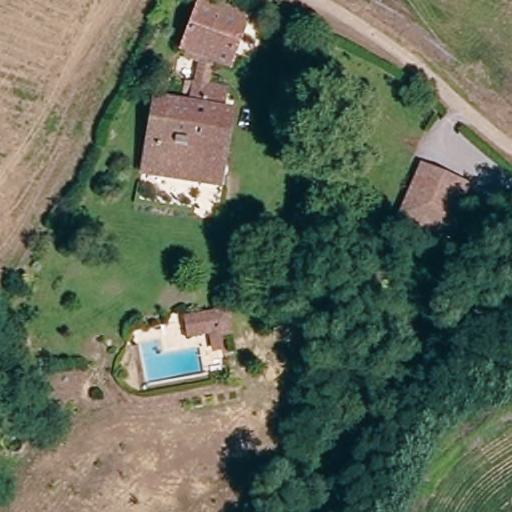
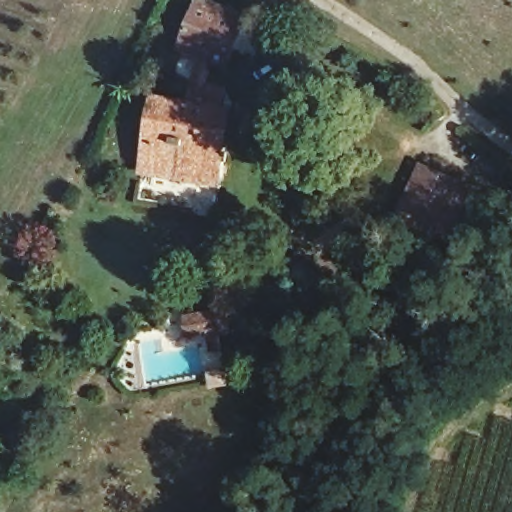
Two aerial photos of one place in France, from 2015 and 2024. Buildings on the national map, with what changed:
unchanged [(195,10),(241,25),(222,75),(177,59),(195,10)]
unchanged [(151,109),(187,115),(197,116),(201,97),(219,100),(216,120),(226,121),(219,164),(200,160),(196,188),(140,179),(151,109)]
unchanged [(438,260),(385,237),(412,167),(469,192),(438,260)]
unchanged [(203,363),(200,341),(180,346),(174,317),(221,309),(231,354),(203,363)]

